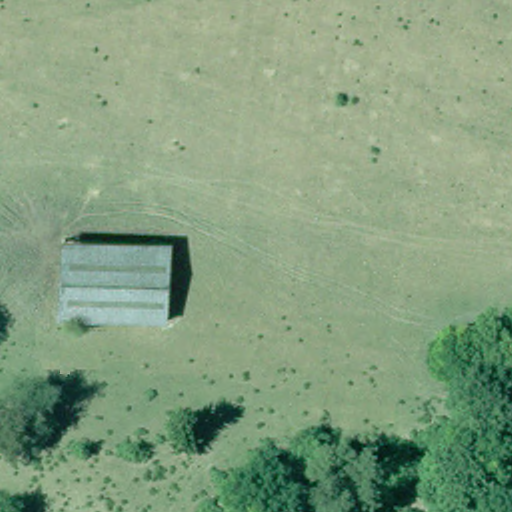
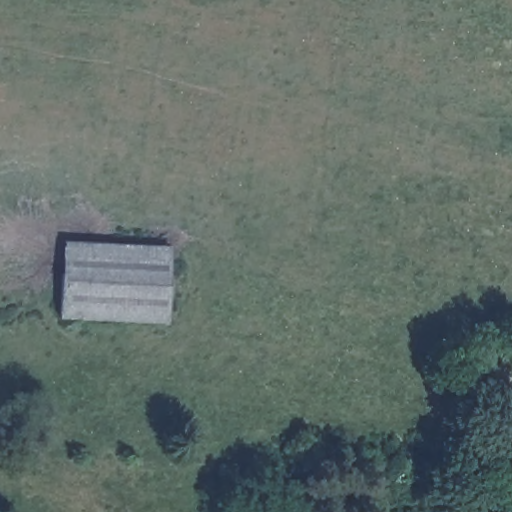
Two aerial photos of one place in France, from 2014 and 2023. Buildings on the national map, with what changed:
unchanged [(172,250),(170,322),(65,316),(70,246),(172,250)]

